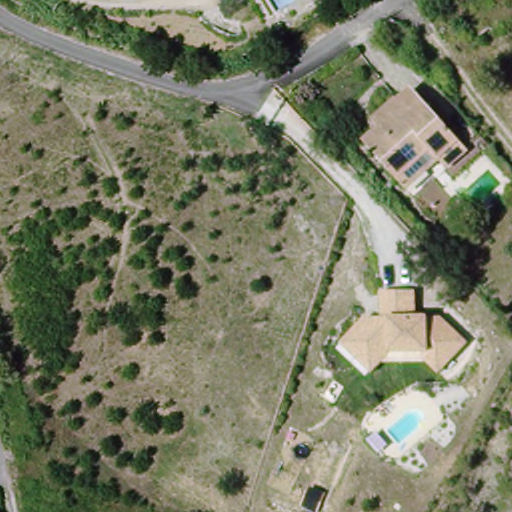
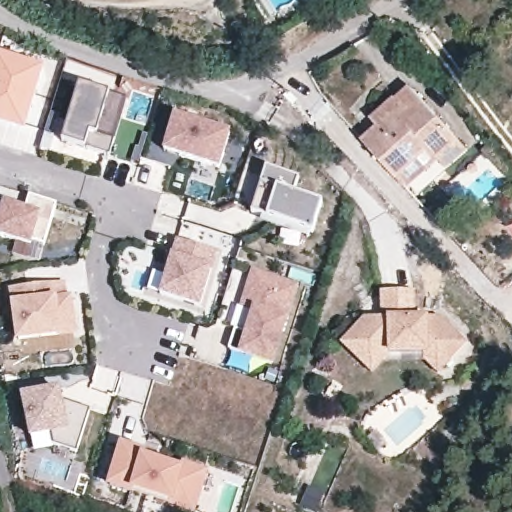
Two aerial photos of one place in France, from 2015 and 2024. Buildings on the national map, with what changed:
new [(25,134),(0,126),(0,54),(44,68),(25,134)]
new [(131,95),(112,156),(58,139),(78,75),(131,95)]
unchanged [(451,178),(444,169),(410,197),(369,151),(384,138),(377,129),(400,109),(403,110),(417,99),(464,152),(472,160),(451,178)]
new [(231,132),(221,169),(163,152),(174,114),(231,132)]
new [(300,177),(294,198),(303,200),(303,197),(322,202),(314,233),(310,232),(309,238),(261,222),(263,215),(252,212),(266,168),(300,177)]
new [(45,246),(33,243),(32,247),(0,239),(0,214),(3,203),(25,209),(30,195),(57,203),(45,246)]
new [(217,252),(201,308),(160,297),(176,239),(217,252)]
new [(298,285),(274,367),(238,356),(238,351),(229,349),(235,329),(246,332),(252,310),(240,307),(252,269),(298,285)]
new [(78,334),(62,337),(16,343),(9,289),(65,282),(67,294),(74,294),(78,334)]
unchanged [(363,317),(377,317),(377,294),(415,292),(415,314),(433,315),(462,343),(435,372),(416,354),(385,356),(372,375),(339,346),(363,317)]
new [(61,389),(63,404),(90,413),(76,450),(55,444),(54,436),(32,441),(20,398),(61,389)]
new [(125,446),(155,456),(153,462),(182,471),(184,466),(207,473),(195,511),(172,504),(173,501),(137,489),(136,492),(112,484),(125,446)]

